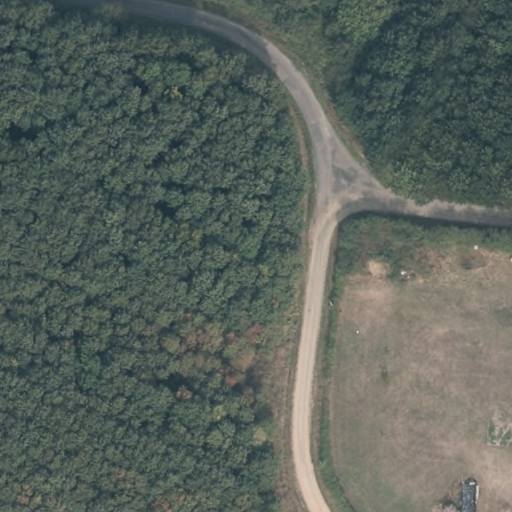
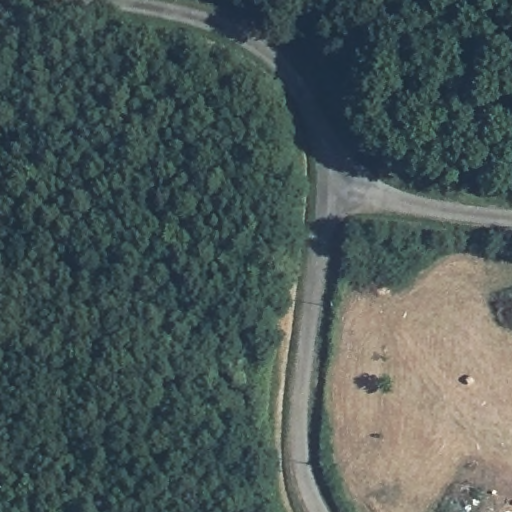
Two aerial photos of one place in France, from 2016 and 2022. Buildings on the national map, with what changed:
[]

